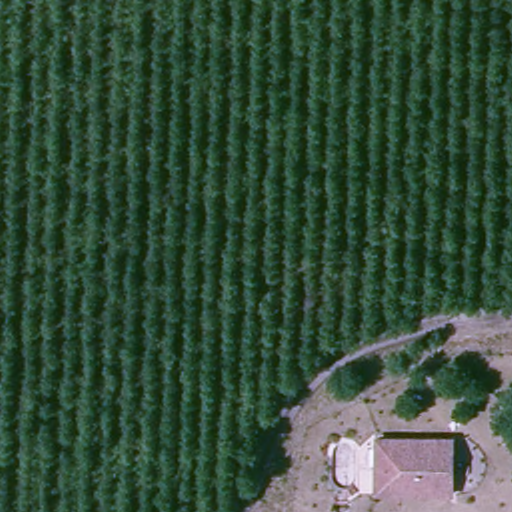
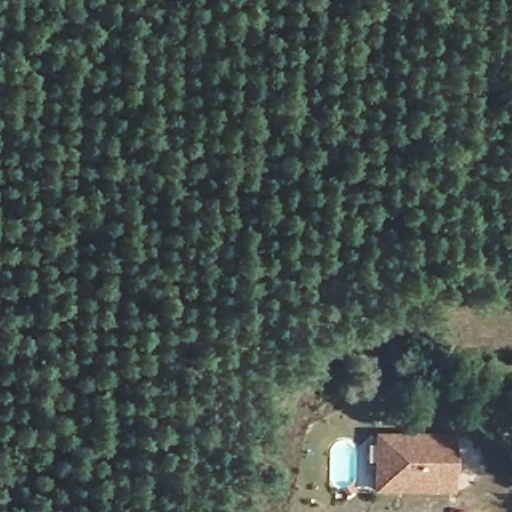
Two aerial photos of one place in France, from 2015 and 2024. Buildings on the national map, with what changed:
unchanged [(443,439),(439,503),(372,498),(374,436),(443,439)]

